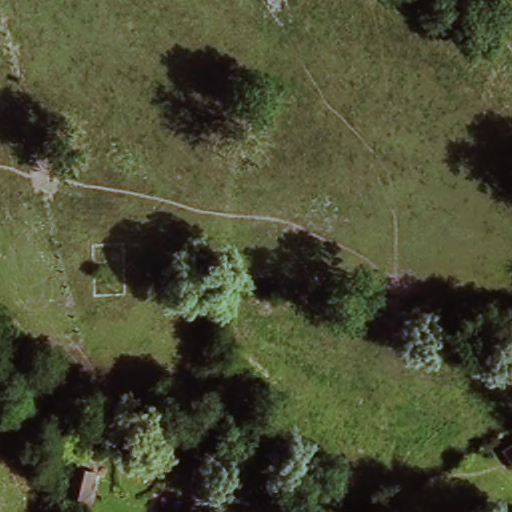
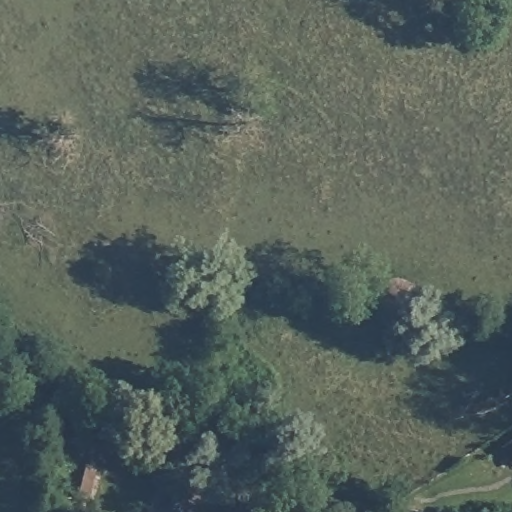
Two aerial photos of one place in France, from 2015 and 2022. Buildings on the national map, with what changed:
unchanged [(512,469),(512,478),(508,471),(512,469)]

